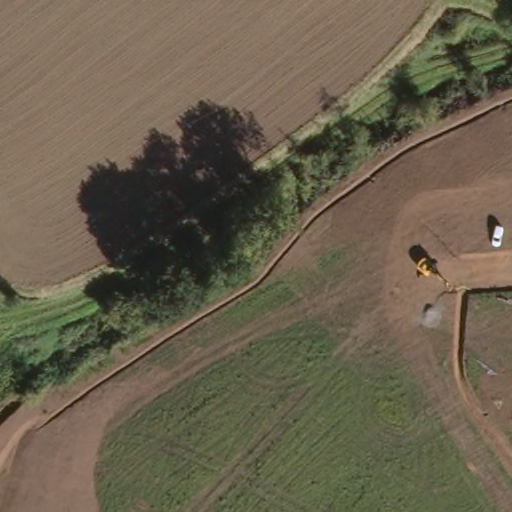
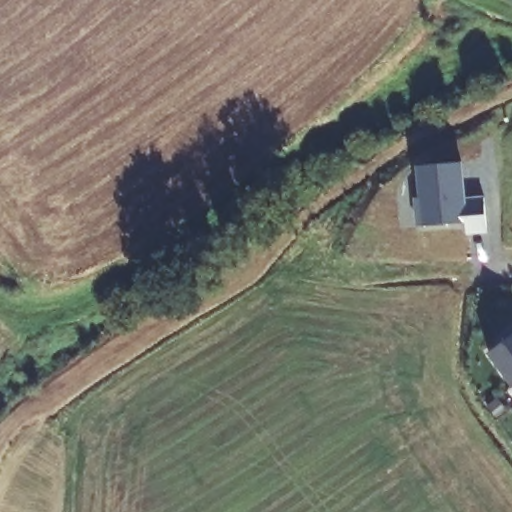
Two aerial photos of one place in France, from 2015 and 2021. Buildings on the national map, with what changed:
new [(466,198),(484,197),(488,232),(466,235),(466,224),(416,227),(414,198),(418,197),(417,166),(463,162),(466,198)]
new [(503,340),(512,333),(512,387),(489,357),(506,343),(503,340)]

